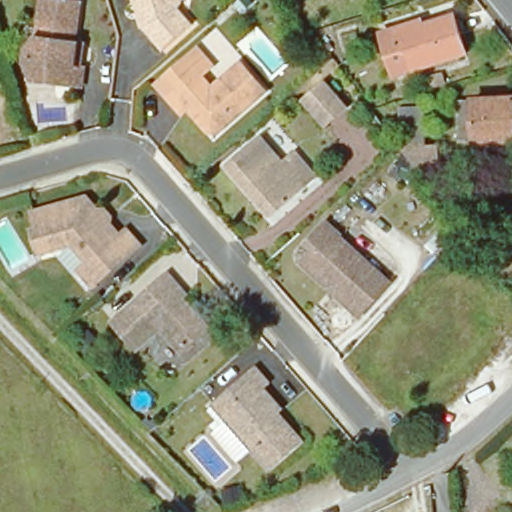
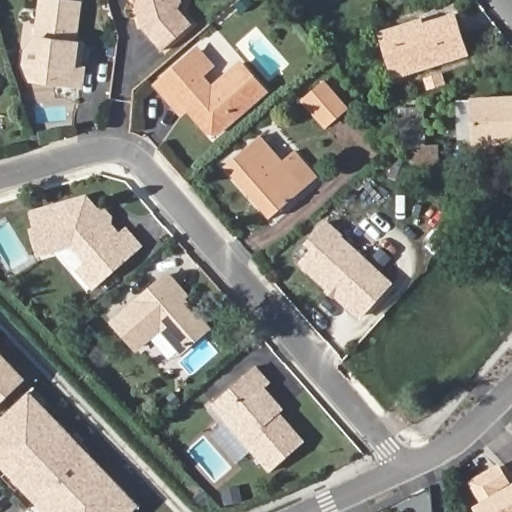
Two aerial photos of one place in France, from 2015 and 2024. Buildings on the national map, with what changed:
unchanged [(76,68),(81,69),(79,87),(30,80),(24,63),(25,48),(35,40),(41,0),(52,0),(77,4),(72,44),(75,44),(80,45),(76,68)]
unchanged [(167,5),(176,6),(191,26),(161,51),(141,28),(133,0),(165,0),(167,5)]
unchanged [(421,25),(453,15),(465,53),(392,75),(383,46),(379,32),(386,30),(420,20),(421,25)]
unchanged [(177,99),(164,82),(201,49),(216,66),(207,73),(219,86),(245,64),(267,89),(266,95),(229,127),(215,126),(196,105),(189,111),(177,99)]
unchanged [(302,101),(321,85),(346,111),(326,129),(302,101)]
unchanged [(455,99),(472,99),(512,97),(512,140),(475,141),(457,142),(455,99)]
unchanged [(400,158),(398,132),(421,131),(423,154),(440,153),(440,174),(412,175),(400,158)]
unchanged [(229,165),(261,135),(282,159),(295,149),(318,175),(273,215),(257,197),(250,189),(229,165)]
unchanged [(126,236),(134,231),(147,245),(101,287),(87,271),(96,263),(81,246),(48,254),(42,231),(49,230),(44,213),(95,200),(126,236)]
unchanged [(386,278),(356,313),(295,258),(307,244),(302,239),(322,217),(335,229),(332,232),(386,278)]
unchanged [(185,350),(163,325),(138,345),(116,321),(169,275),(181,287),(187,295),(183,298),(209,329),(185,350)]
new [(0,401),(0,355),(23,379),(0,401)]
unchanged [(212,435),(227,421),(212,405),(254,367),(267,382),(265,385),(282,406),(277,411),(305,442),(272,471),(254,450),(239,463),(212,435)]
new [(0,417),(28,390),(32,386),(48,402),(43,406),(72,434),(86,450),(134,501),(137,506),(132,512),(43,512),(0,466),(0,417)]
new [(482,500),(470,480),(496,465),(505,479),(488,489),(491,495),(512,483),(512,512),(478,512),(475,505),(482,500)]

